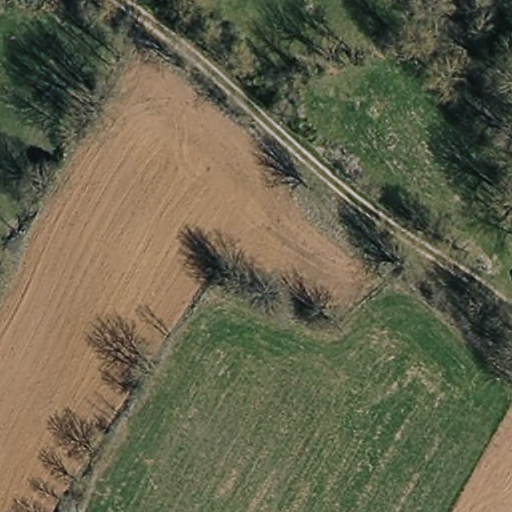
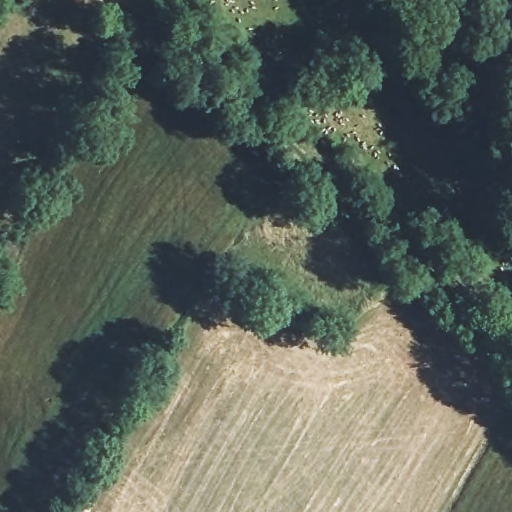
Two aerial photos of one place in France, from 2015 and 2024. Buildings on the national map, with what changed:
[]

